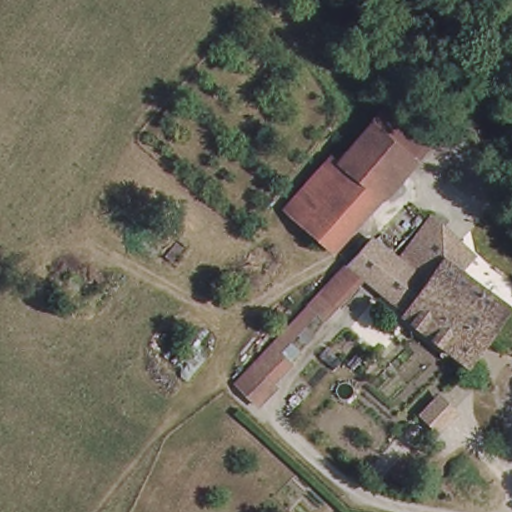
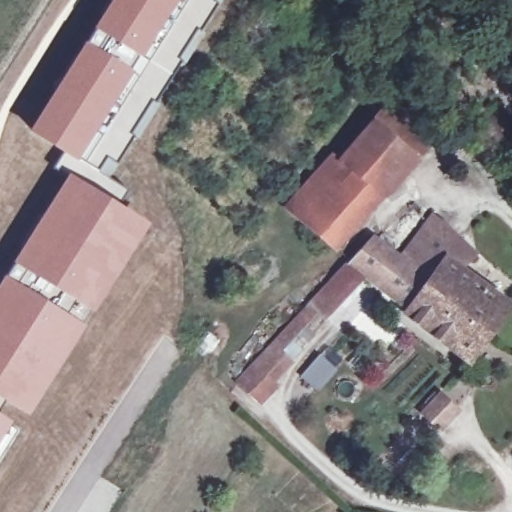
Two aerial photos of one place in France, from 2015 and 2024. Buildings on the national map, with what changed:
new [(183,0),(177,11),(180,13),(170,30),(187,44),(178,59),(183,62),(154,103),(159,106),(110,178),(97,171),(63,153),(29,130),(111,0),(183,0)]
unchanged [(386,103),(427,138),(410,158),(395,177),(353,140),(369,121),(386,103)]
unchanged [(345,173),(334,162),(353,140),(395,177),(329,249),(300,223),(302,222),(345,173)]
new [(63,153),(97,171),(110,178),(127,190),(120,203),(68,173),(55,165),(63,153)]
unchanged [(334,162),(345,173),(302,222),(283,205),(282,205),(327,156),(334,162)]
new [(68,173),(120,203),(152,223),(85,325),(5,274),(68,173)]
new [(460,371),(437,352),(417,336),(398,322),(382,308),(402,280),(387,300),(365,279),(357,286),(360,289),(344,308),(340,303),(325,319),(318,313),(306,326),(315,335),(308,343),(298,334),(292,340),(302,351),(292,360),(294,363),(275,381),(280,386),(260,405),(234,381),(307,303),(345,262),(347,264),(373,236),(400,255),(432,213),(444,223),(477,254),(464,266),(460,262),(479,282),(509,302),(498,316),(475,348),(460,371)]
demolished [(446,280),(460,262),(479,282),(469,295),(498,316),(475,348),(460,371),(437,352),(417,336),(398,322),(419,294),(435,273),(446,280)]
new [(5,274),(85,325),(71,350),(27,415),(0,399),(0,282),(5,274)]
new [(17,429),(0,457),(0,419),(17,429)]

